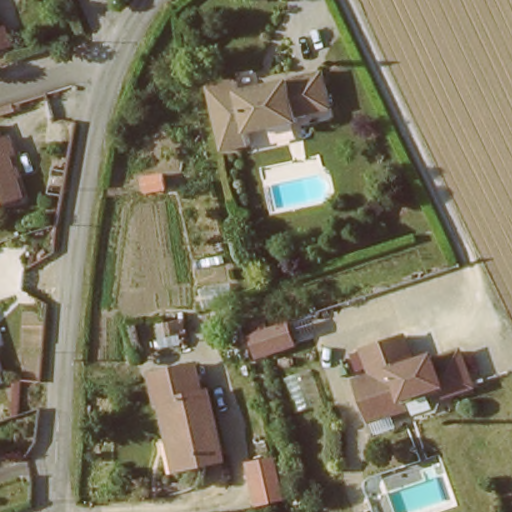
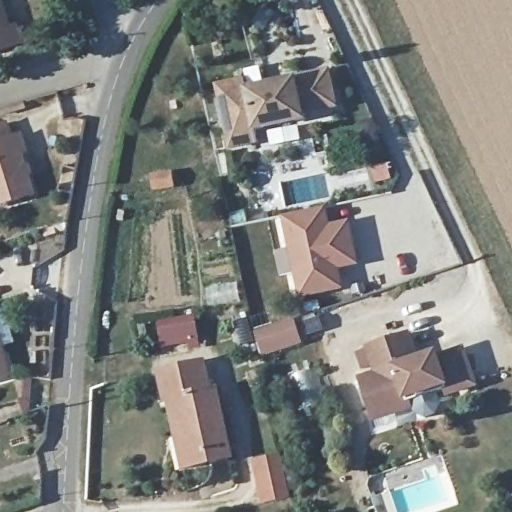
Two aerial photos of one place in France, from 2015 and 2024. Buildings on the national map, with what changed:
unchanged [(0,35),(0,5),(8,32),(0,35)]
unchanged [(247,89),(297,80),(297,77),(330,71),(338,107),(307,114),(307,121),(256,130),(258,144),(229,149),(218,85),(246,80),(247,89)]
unchanged [(15,139),(22,159),(18,160),(31,197),(0,208),(0,130),(4,129),(7,139),(7,141),(15,139)]
new [(360,267),(339,270),(343,291),(300,298),(283,217),(327,209),(331,226),(350,222),(360,267)]
unchanged [(270,320),(297,312),(302,335),(264,345),(258,323),(270,320)]
unchanged [(388,415),(385,406),(368,410),(358,378),(373,373),(367,347),(407,336),(415,362),(433,356),(435,360),(462,352),(472,388),(445,396),(444,392),(405,402),(407,410),(388,415)]
unchanged [(0,380),(0,348),(9,376),(0,380)]
unchanged [(173,398),(166,400),(160,370),(200,362),(206,388),(173,398)]
unchanged [(206,388),(213,385),(228,460),(193,467),(187,438),(181,439),(173,398),(206,388)]
unchanged [(285,448),(293,490),(267,495),(258,454),(285,448)]

